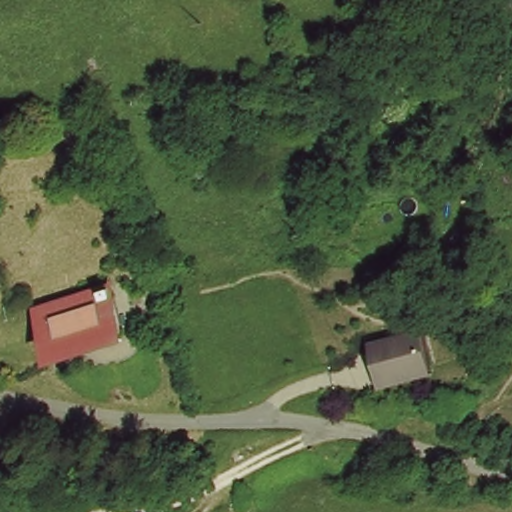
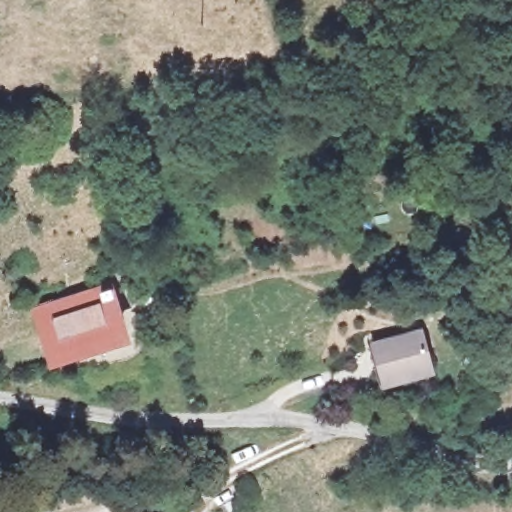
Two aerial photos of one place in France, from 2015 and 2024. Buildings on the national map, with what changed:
unchanged [(60,305),(99,290),(113,285),(131,330),(62,359),(41,312),(60,305)]
unchanged [(433,368),(386,382),(378,350),(423,337),(433,368)]

